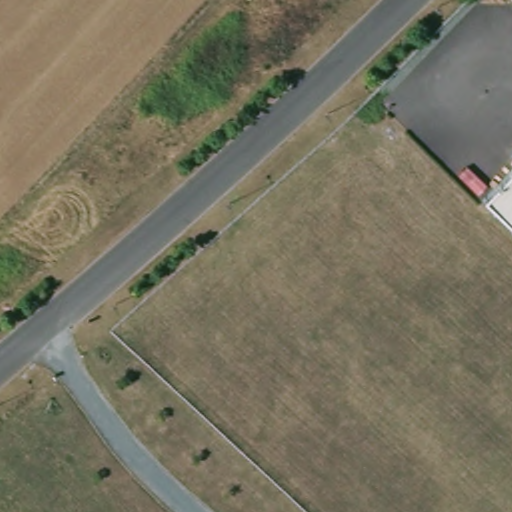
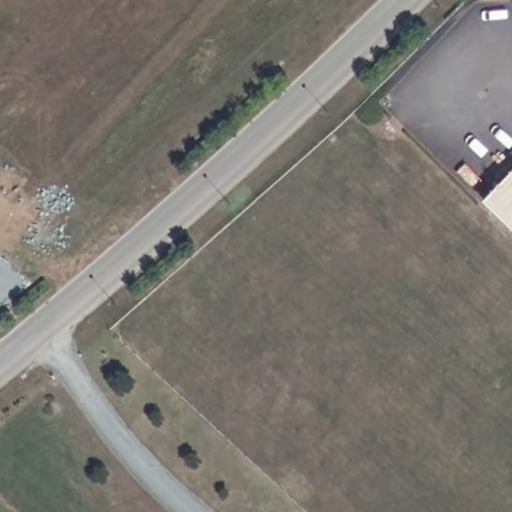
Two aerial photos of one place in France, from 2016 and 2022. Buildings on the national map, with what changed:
unchanged [(512,171),(512,224),(485,198),(512,171)]

